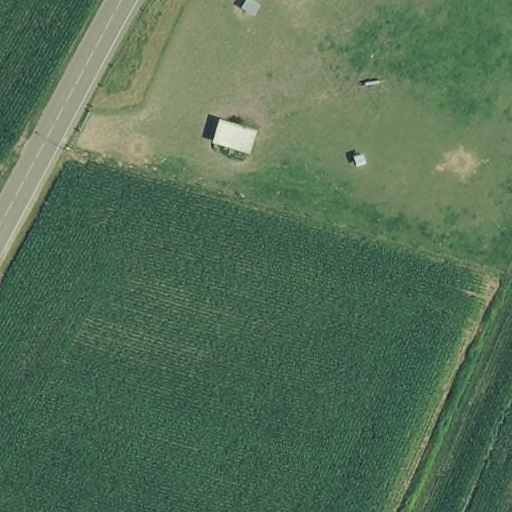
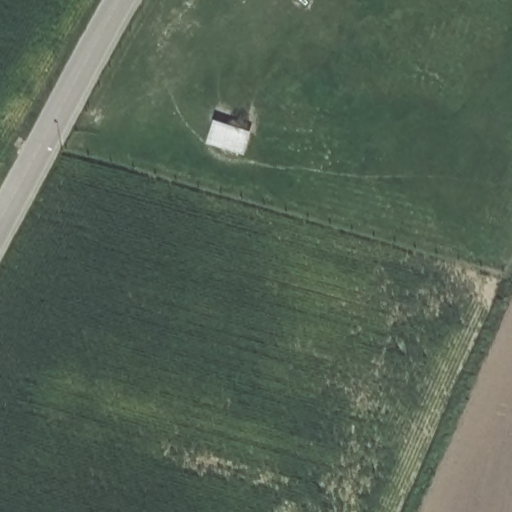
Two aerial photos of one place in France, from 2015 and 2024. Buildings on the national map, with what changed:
unchanged [(209,143),(219,116),(258,129),(250,155),(209,143)]

